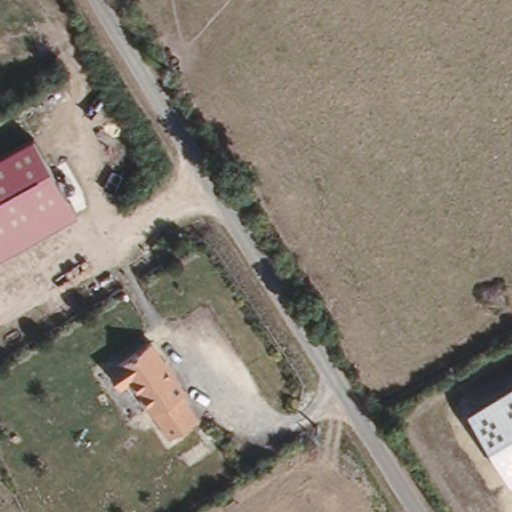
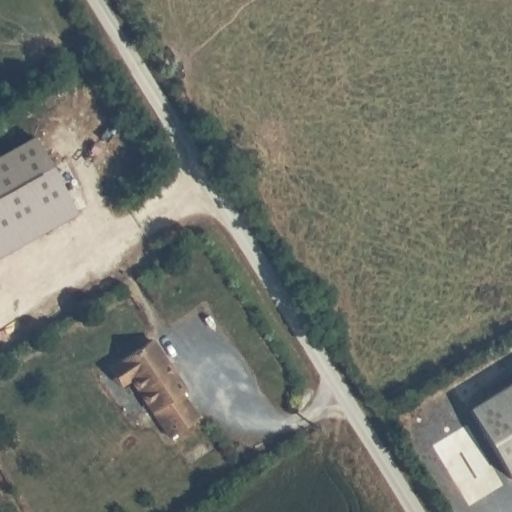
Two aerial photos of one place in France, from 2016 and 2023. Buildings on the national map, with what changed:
unchanged [(34,137),(75,214),(0,258),(0,156),(34,137)]
unchanged [(155,342),(187,391),(182,394),(197,418),(168,436),(150,410),(131,382),(120,387),(110,367),(155,342)]
unchanged [(468,410),(512,383),(512,482),(511,482),(468,410)]

